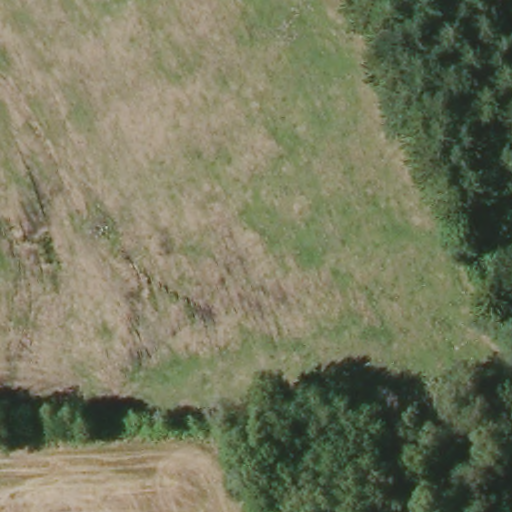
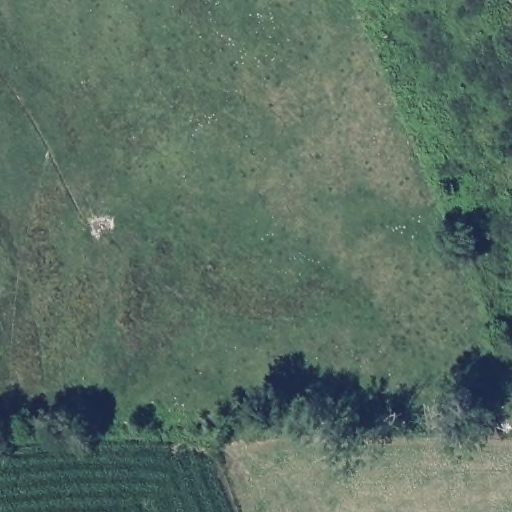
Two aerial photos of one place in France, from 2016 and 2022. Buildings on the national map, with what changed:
[]

